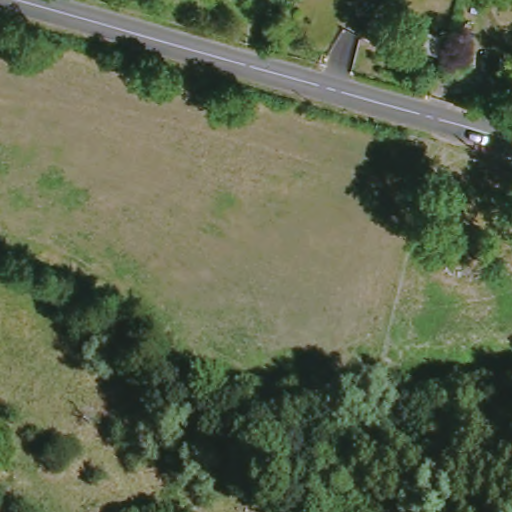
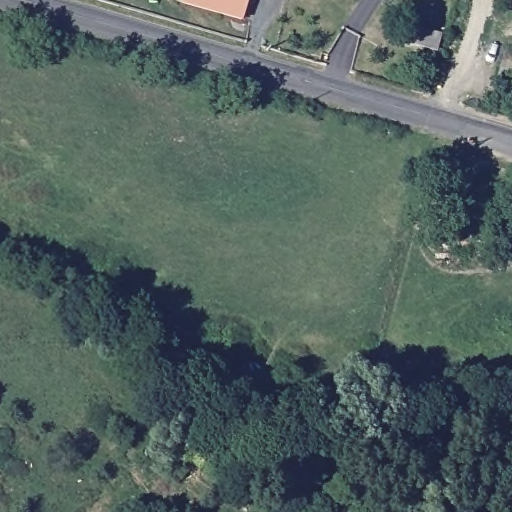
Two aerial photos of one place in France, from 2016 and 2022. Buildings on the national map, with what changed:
new [(249,0),(242,22),(183,5),(184,0),(249,0)]
unchanged [(415,34),(437,41),(432,57),(410,50),(399,46),(403,31),(415,34)]
unchanged [(506,86),(493,82),(497,60),(511,63),(506,86)]

